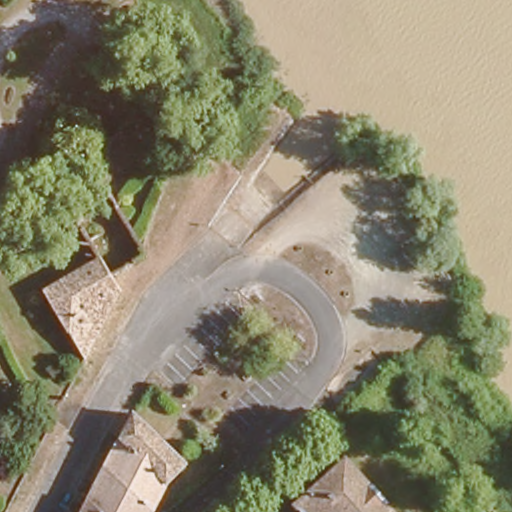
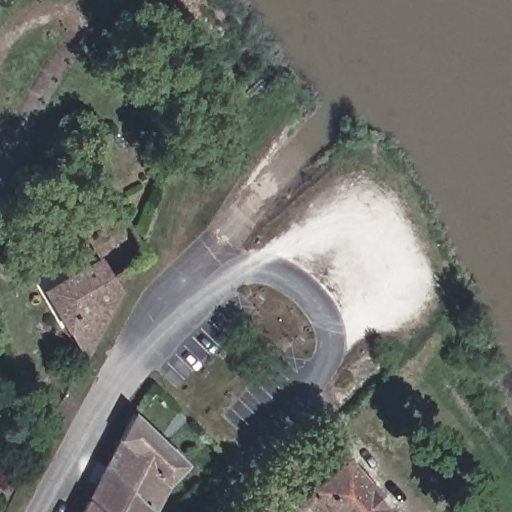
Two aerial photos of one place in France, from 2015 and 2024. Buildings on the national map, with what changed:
unchanged [(99,258),(115,287),(82,346),(43,290),(99,258)]
unchanged [(154,512),(149,512),(105,464),(133,412),(182,465),(154,512)]
unchanged [(96,512),(86,501),(105,464),(149,512),(96,512)]
unchanged [(361,490),(365,487),(380,505),(378,511),(379,512),(307,512),(299,503),(339,466),(361,490)]
unchanged [(80,512),(86,501),(96,512),(80,512)]

